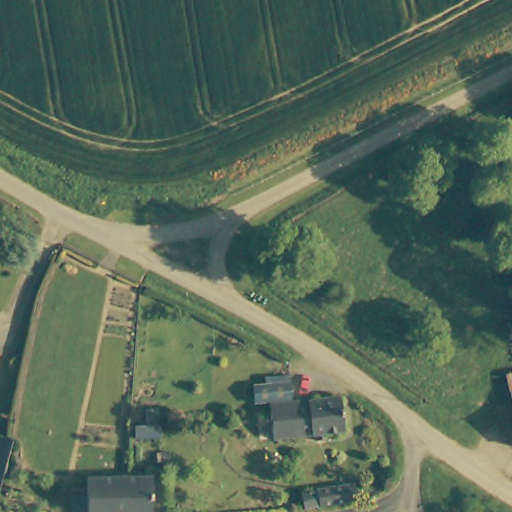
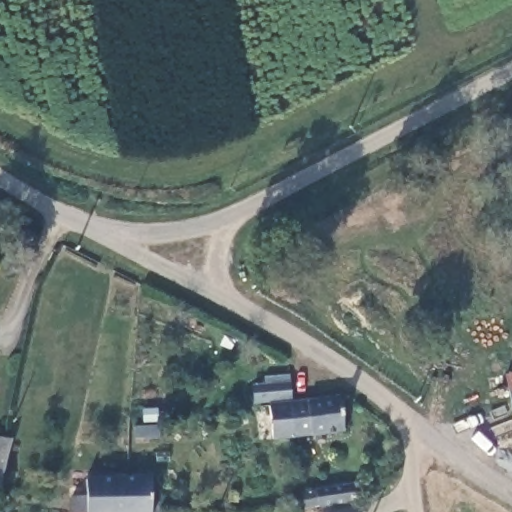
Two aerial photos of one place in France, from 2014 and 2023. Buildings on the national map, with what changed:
unchanged [(512,394),(508,376),(512,375),(512,397),(512,394)]
unchanged [(277,402),(275,385),(313,381),(314,398),(277,402)]
unchanged [(363,396),(369,429),(331,433),(298,438),(294,404),(314,401),(363,396)]
unchanged [(14,494),(0,491),(0,464),(4,440),(22,444),(14,494)]
unchanged [(142,478),(159,477),(158,512),(93,512),(93,479),(142,478)]
unchanged [(352,482),(355,502),(314,506),(312,486),(352,482)]

